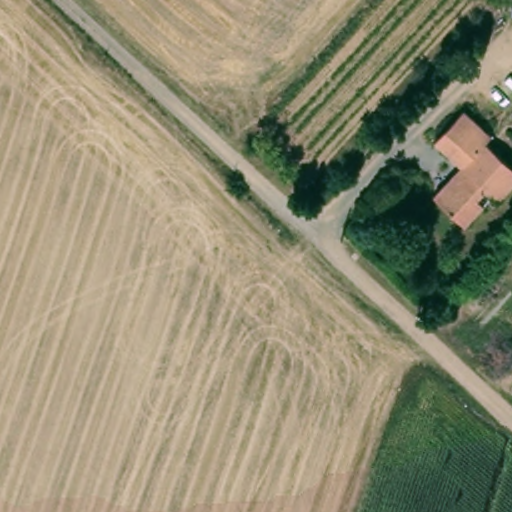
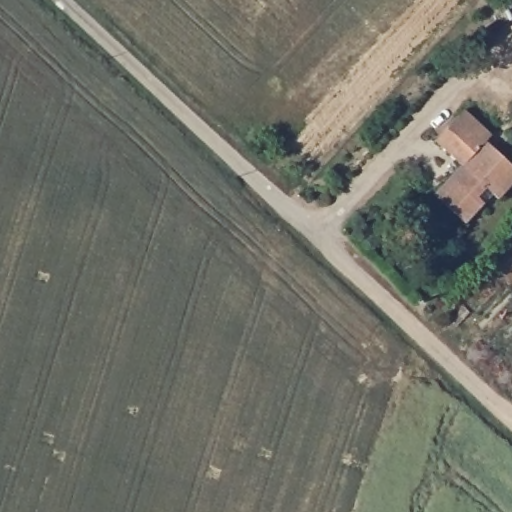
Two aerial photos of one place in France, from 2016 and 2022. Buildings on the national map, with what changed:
unchanged [(437,146),(466,112),(496,140),(490,147),(512,166),(512,194),(504,203),(499,199),(473,229),(439,200),(466,169),(454,157),(453,160),(437,146)]

